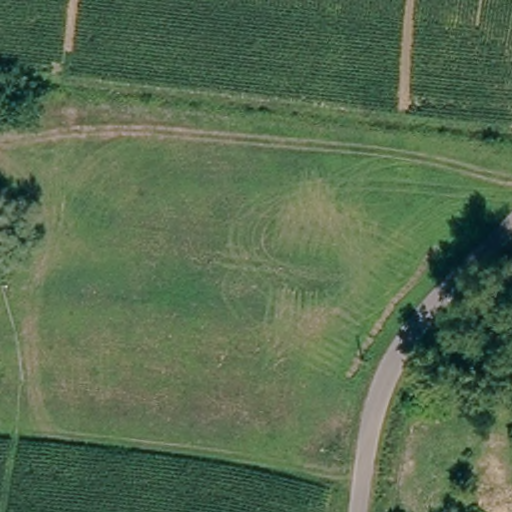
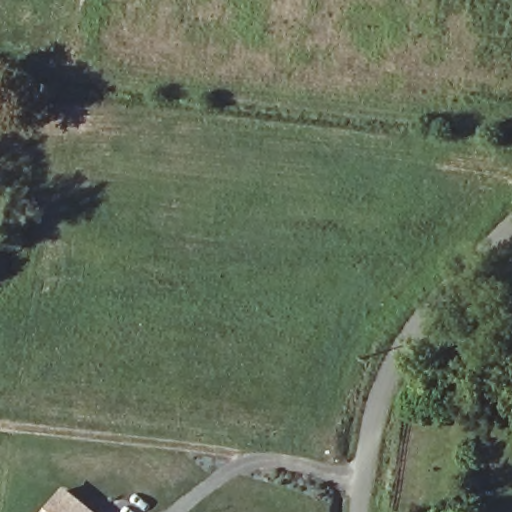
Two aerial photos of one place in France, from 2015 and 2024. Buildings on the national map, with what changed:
new [(93,512),(44,512),(64,488),(93,512)]

